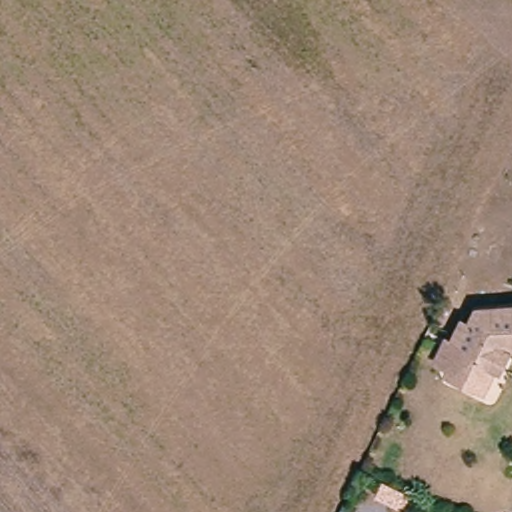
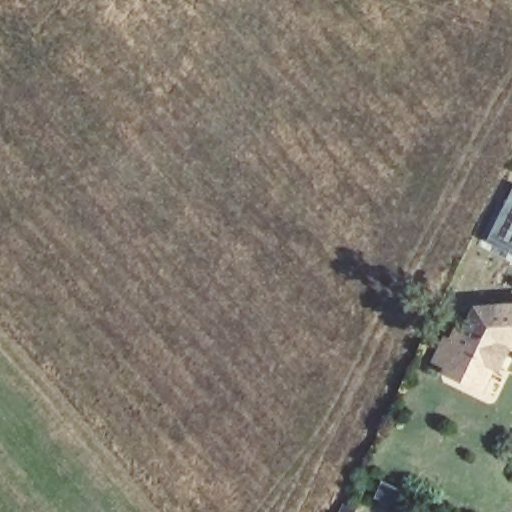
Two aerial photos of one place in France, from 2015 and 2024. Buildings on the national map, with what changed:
new [(512,194),(512,249),(490,239),(512,194)]
unchanged [(455,373),(441,366),(451,346),(458,350),(469,329),(475,332),(483,316),(512,314),(512,353),(507,353),(489,390),(486,395),(452,378),(455,373)]
unchanged [(403,486),(396,501),(378,492),(385,477),(403,486)]

